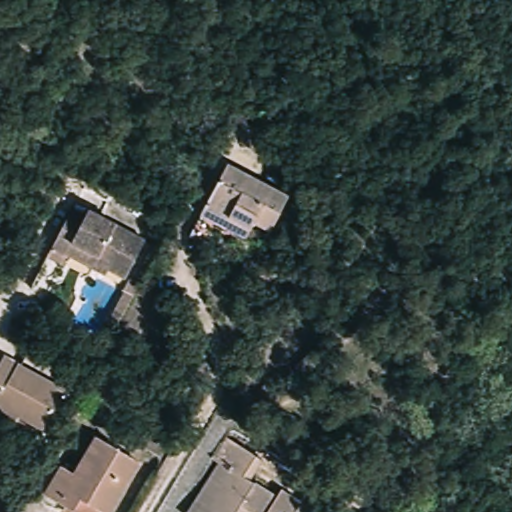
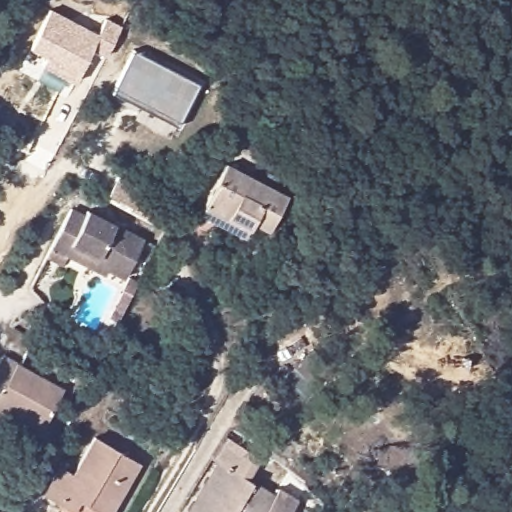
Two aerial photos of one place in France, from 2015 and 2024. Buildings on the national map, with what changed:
new [(104,18),(120,25),(105,56),(92,49),(74,81),(43,66),(47,59),(30,50),(49,8),(98,32),(104,18)]
new [(116,88),(134,52),(198,85),(179,121),(176,127),(113,94),(116,88)]
unchanged [(247,240),(221,226),(211,246),(190,235),(227,164),(289,191),(269,234),(254,226),(247,240)]
unchanged [(75,245),(69,256),(45,244),(63,210),(77,218),(81,212),(112,229),(97,257),(75,245)]
unchanged [(112,229),(138,242),(121,275),(95,261),(97,257),(112,229)]
unchanged [(1,394),(0,395),(0,353),(2,350),(24,362),(6,396),(1,394)]
unchanged [(66,386),(43,428),(17,413),(21,405),(6,396),(24,362),(66,386)]
unchanged [(301,381),(315,363),(336,380),(321,398),(301,381)]
unchanged [(211,466),(202,461),(214,438),(250,458),(240,477),(273,495),(278,488),(296,500),(289,512),(202,512),(212,493),(201,487),(211,466)]
unchanged [(89,443),(137,469),(116,512),(82,512),(77,509),(75,512),(55,512),(40,503),(55,473),(69,481),(89,443)]

